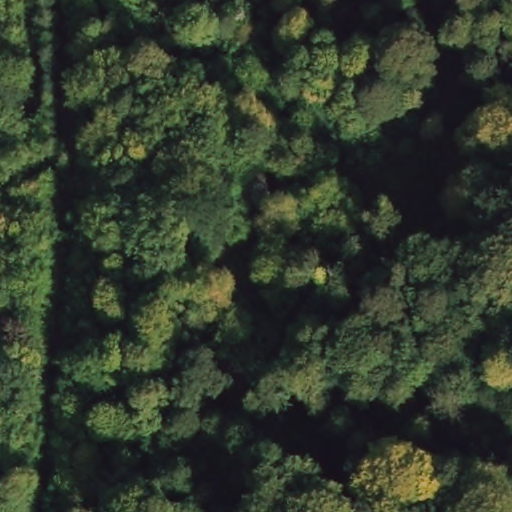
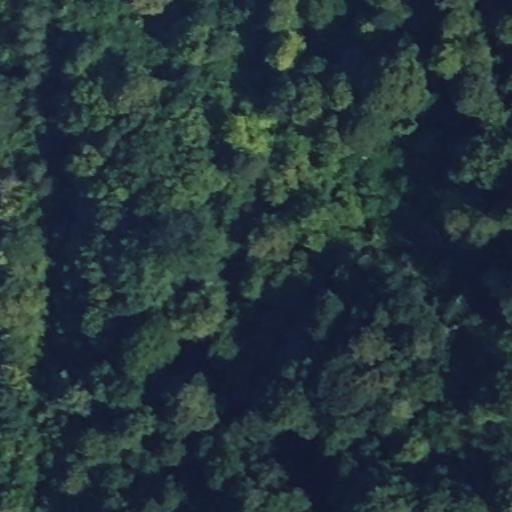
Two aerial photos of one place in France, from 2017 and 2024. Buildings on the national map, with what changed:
unchanged [(277,208),(248,213),(239,187),(267,177),(277,208)]

